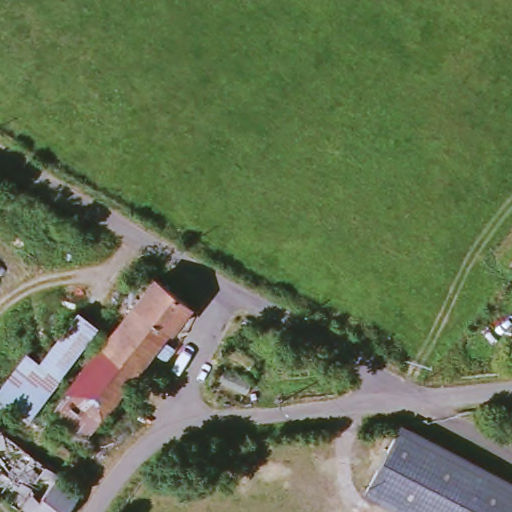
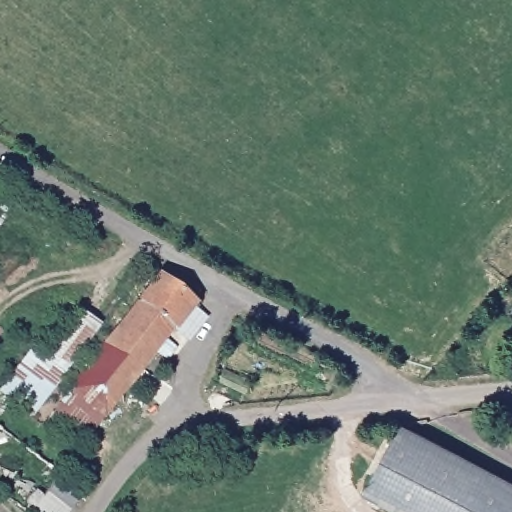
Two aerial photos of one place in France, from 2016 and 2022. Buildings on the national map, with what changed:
unchanged [(118,328),(158,274),(195,303),(168,338),(181,348),(172,360),(159,350),(153,358),(80,454),(44,427),(118,328)]
unchanged [(26,352),(45,366),(82,314),(99,326),(33,420),(0,397),(0,390),(26,352)]
unchanged [(400,428),(512,482),(512,512),(404,512),(368,495),(400,428)]

